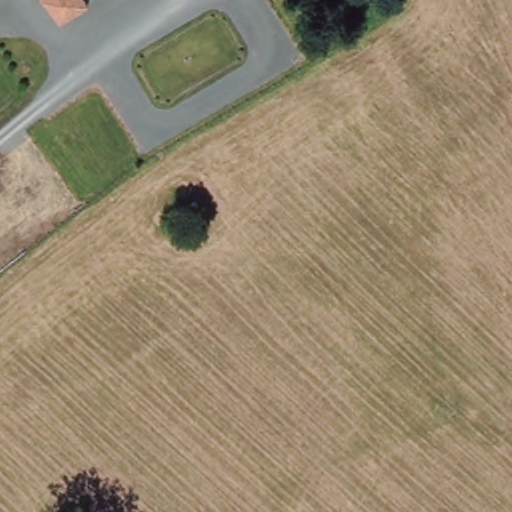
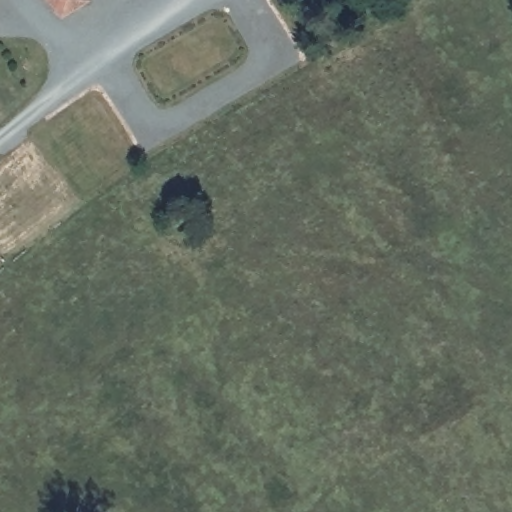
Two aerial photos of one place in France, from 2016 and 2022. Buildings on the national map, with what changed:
unchanged [(56,20),(41,0),(85,0),(56,20)]

